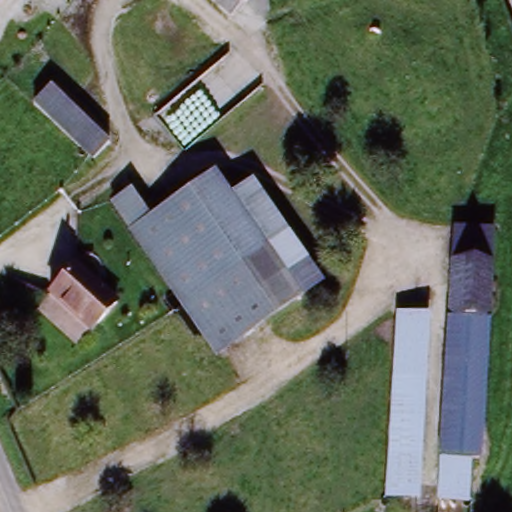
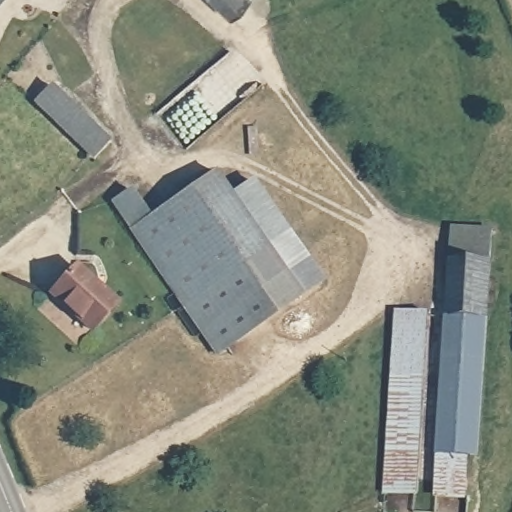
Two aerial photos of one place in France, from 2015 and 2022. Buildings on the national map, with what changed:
unchanged [(0,2),(0,0),(1,0),(0,2)]
unchanged [(226,14),(215,0),(244,0),(226,14)]
unchanged [(65,87),(108,145),(85,163),(40,107),(65,87)]
unchanged [(206,356),(117,192),(135,182),(152,209),(219,172),(235,203),(277,282),(291,308),(206,356)]
unchanged [(258,190),(301,266),(277,282),(235,203),(258,190)]
unchanged [(453,226),(491,229),(490,261),(452,259),(453,226)]
unchanged [(494,262),(482,457),(444,455),(452,259),(490,261),(494,262)]
unchanged [(116,305),(89,329),(55,288),(81,265),(116,305)]
unchanged [(430,298),(423,497),(395,495),(401,297),(430,298)]
unchanged [(482,457),(479,512),(442,512),(444,455),(482,457)]

